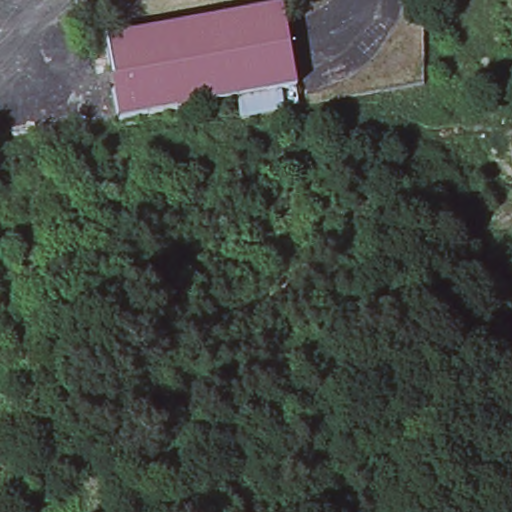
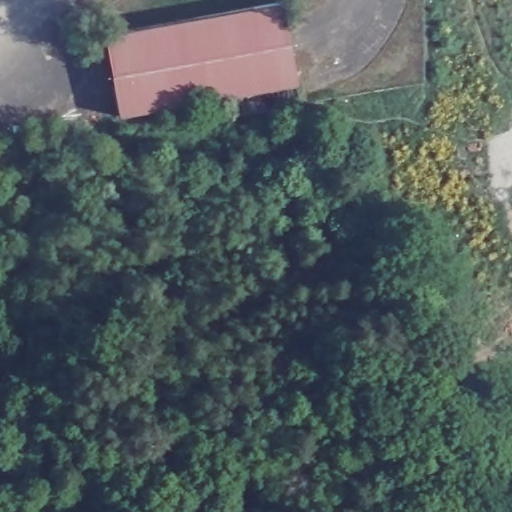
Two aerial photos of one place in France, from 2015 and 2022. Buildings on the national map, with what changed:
unchanged [(283,4),(298,86),(212,102),(196,20),(283,4)]
unchanged [(212,102),(120,118),(106,35),(196,20),(212,102)]

